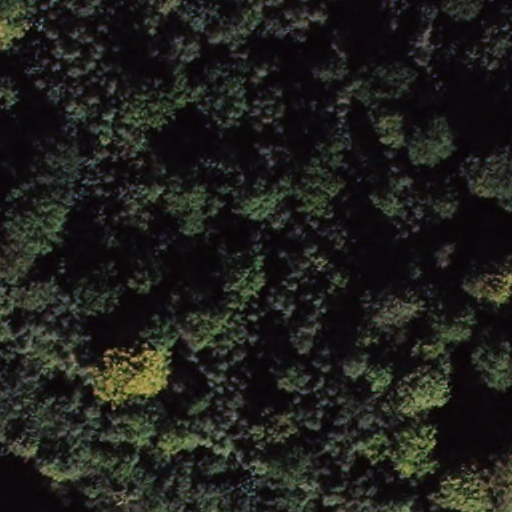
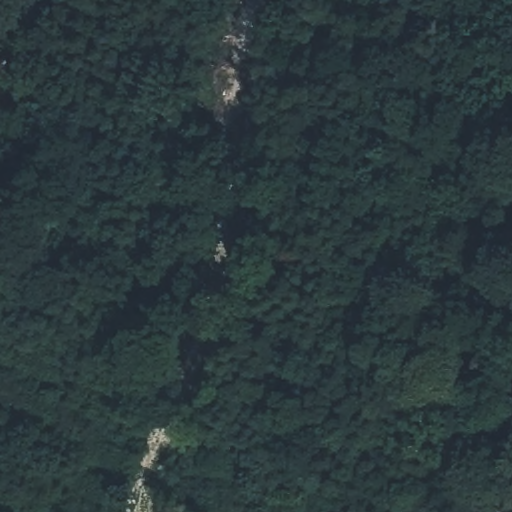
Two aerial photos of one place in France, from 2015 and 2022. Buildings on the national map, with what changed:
[]

